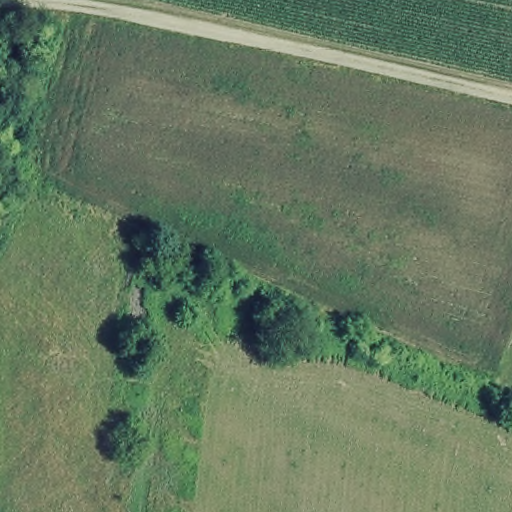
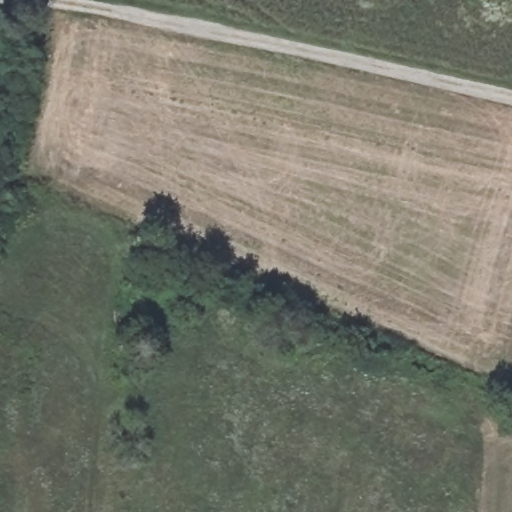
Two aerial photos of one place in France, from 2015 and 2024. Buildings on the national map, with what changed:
unchanged [(154,333),(129,332),(131,284),(157,285),(154,333)]

